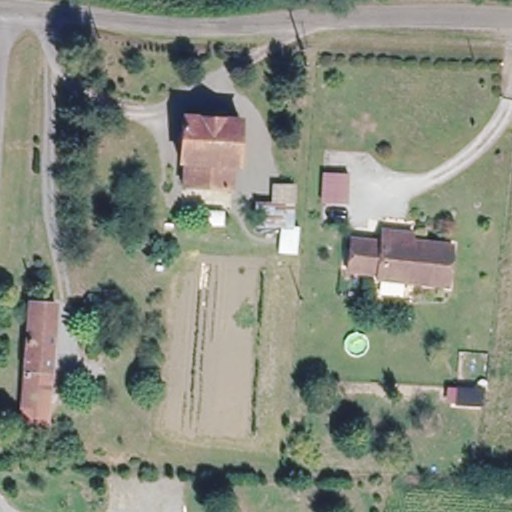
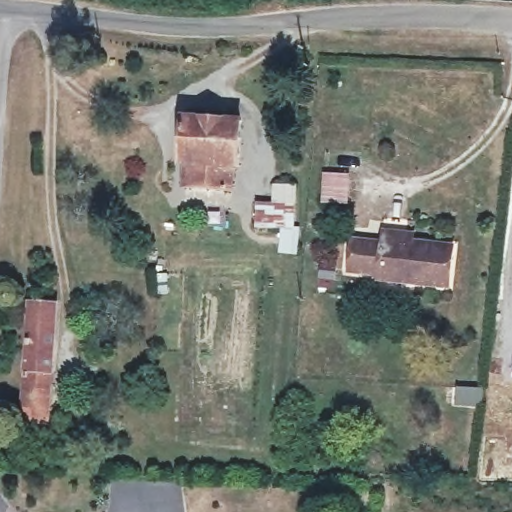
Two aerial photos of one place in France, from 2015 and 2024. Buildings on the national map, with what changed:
unchanged [(178,116),(238,120),(236,158),(233,157),(232,187),(180,184),(182,154),(175,154),(178,116)]
unchanged [(328,180),(349,181),(348,202),(327,200),(328,180)]
unchanged [(298,185),(297,228),(303,228),(299,255),(278,254),(281,229),(255,228),(256,201),(273,201),(273,184),(298,185)]
unchanged [(354,233),(381,234),(381,226),(456,231),(453,275),(379,270),(380,260),(352,258),(354,233)]
unchanged [(54,299),(46,423),(18,421),(24,297),(54,299)]

